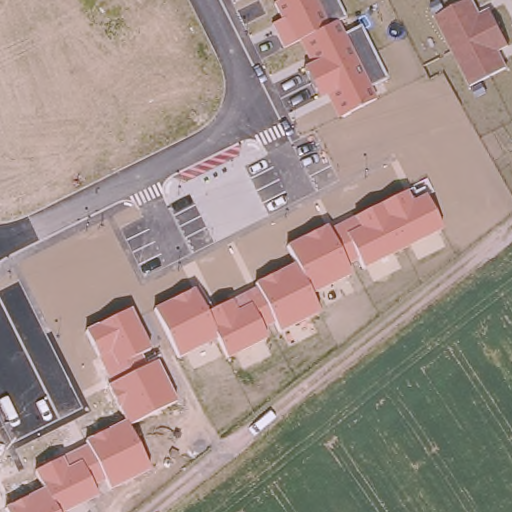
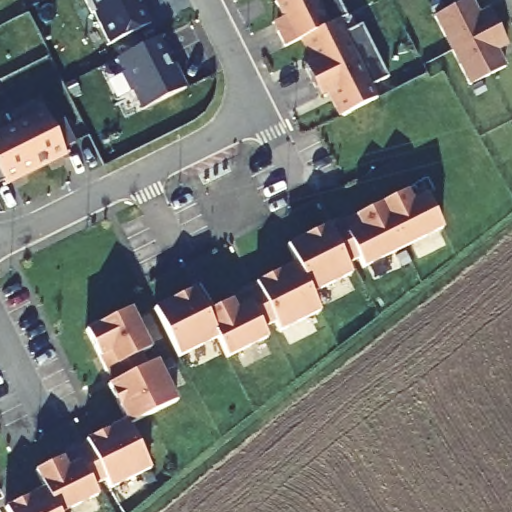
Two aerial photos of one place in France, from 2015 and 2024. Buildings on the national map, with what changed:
new [(86,0),(143,0),(154,22),(110,44),(86,0)]
unchanged [(342,110),(333,89),(317,98),(302,68),(309,63),(298,40),(292,44),(285,47),(275,29),(285,24),(273,0),(338,0),(345,14),(334,19),(343,34),(361,25),(385,72),(367,82),(373,94),(342,110)]
unchanged [(435,11),(462,0),(473,0),(479,12),(490,8),(505,45),(492,50),(500,65),(465,80),(435,11)]
new [(167,35),(175,53),(170,56),(175,65),(177,64),(189,88),(147,109),(138,92),(136,93),(125,72),(128,71),(122,57),(167,35)]
new [(15,124),(45,109),(67,154),(38,169),(15,124)]
new [(67,121),(77,143),(65,149),(54,127),(67,121)]
new [(0,131),(15,124),(38,169),(8,184),(0,168),(0,131)]
new [(0,181),(0,168),(5,179),(0,181)]
unchanged [(403,191),(427,178),(433,191),(427,195),(442,230),(362,266),(360,259),(349,263),(332,227),(403,191)]
unchanged [(295,265),(285,244),(325,224),(349,277),(310,296),(316,311),(278,327),(275,323),(265,329),(245,290),(256,285),(295,265)]
unchanged [(243,295),(265,337),(227,357),(216,336),(178,354),(153,309),(192,290),(205,314),(243,295)]
unchanged [(131,307),(149,347),(140,351),(145,364),(107,381),(94,356),(82,330),(131,307)]
unchanged [(154,362),(173,401),(128,422),(151,472),(107,492),(102,483),(83,447),(78,437),(124,417),(107,383),(154,362)]
unchanged [(35,471),(83,447),(102,483),(90,488),(93,494),(54,511),(54,512),(6,512),(3,508),(42,488),(35,471)]

